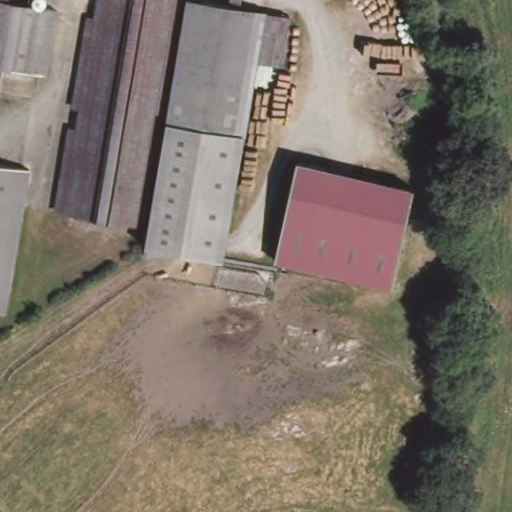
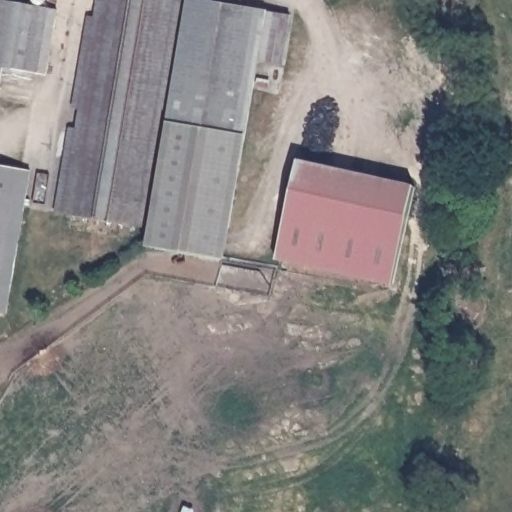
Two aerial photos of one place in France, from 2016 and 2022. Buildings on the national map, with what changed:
unchanged [(94,0),(173,0),(158,84),(132,228),(55,214),(82,66),(94,0)]
unchanged [(161,119),(184,0),(225,8),(227,0),(236,0),(235,10),(221,87),(215,124),(212,135),(160,125),(161,119)]
unchanged [(45,76),(6,70),(1,100),(0,99),(0,2),(60,12),(45,76)]
unchanged [(212,135),(215,124),(221,87),(235,10),(235,5),(291,14),(282,63),(260,60),(241,137),(212,135)]
unchanged [(160,125),(212,135),(241,137),(223,261),(141,250),(160,125)]
unchanged [(301,160),(416,189),(395,284),(278,255),(301,160)]
unchanged [(5,317),(0,317),(0,167),(32,172),(5,317)]

